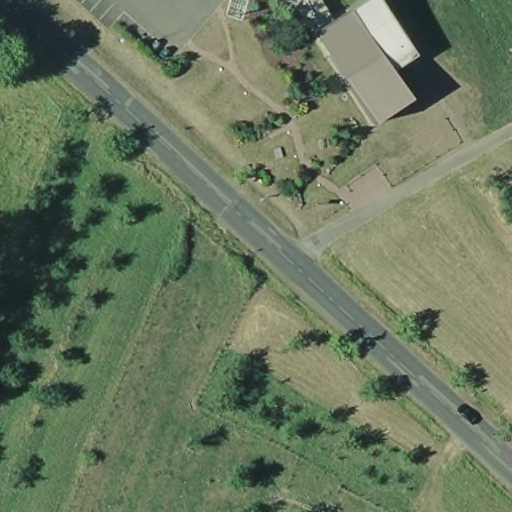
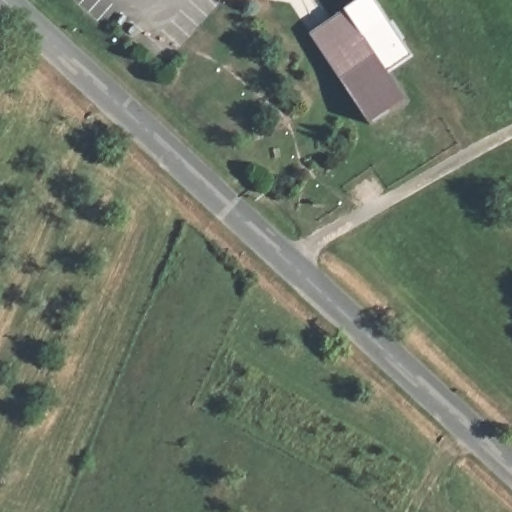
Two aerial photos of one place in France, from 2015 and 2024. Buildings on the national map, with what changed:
unchanged [(415,59),(396,71),(412,99),(374,122),(313,31),(363,0),(378,0),(415,59)]

